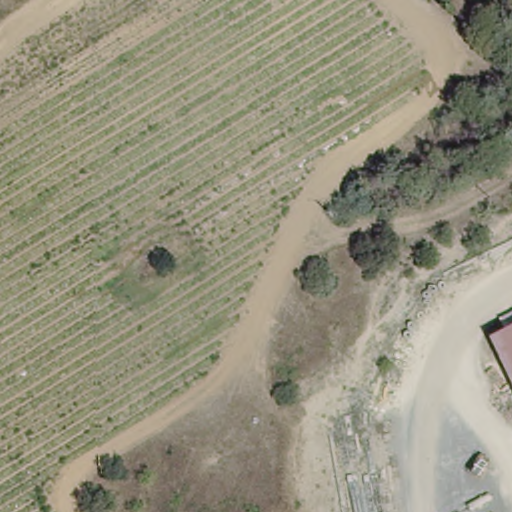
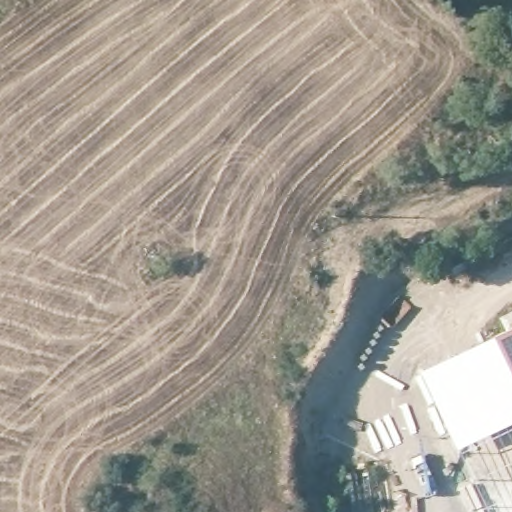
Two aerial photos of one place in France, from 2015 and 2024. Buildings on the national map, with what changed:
unchanged [(512,325),(512,388),(489,337),(512,325)]
new [(512,388),(512,512),(489,512),(457,449),(420,372),(489,337),(512,388)]

